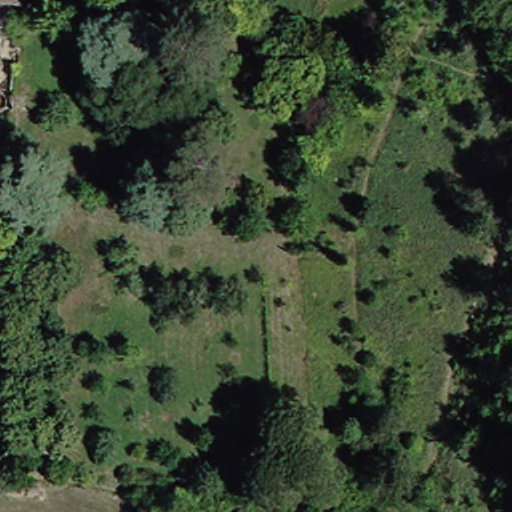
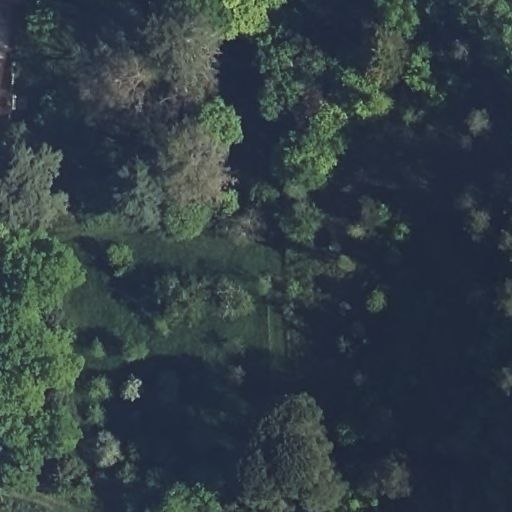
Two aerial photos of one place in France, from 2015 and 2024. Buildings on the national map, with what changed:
unchanged [(201,194),(201,216),(175,215),(178,196),(201,194)]

